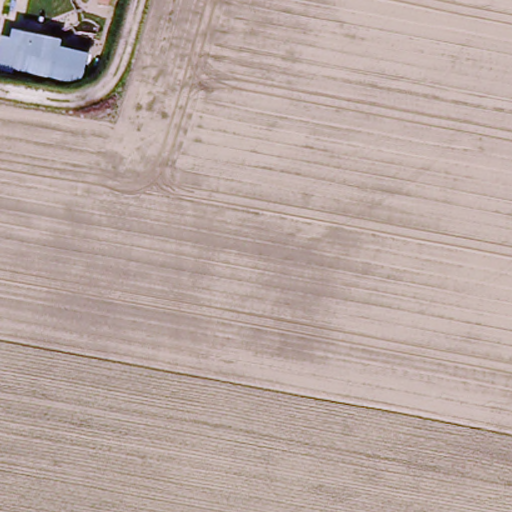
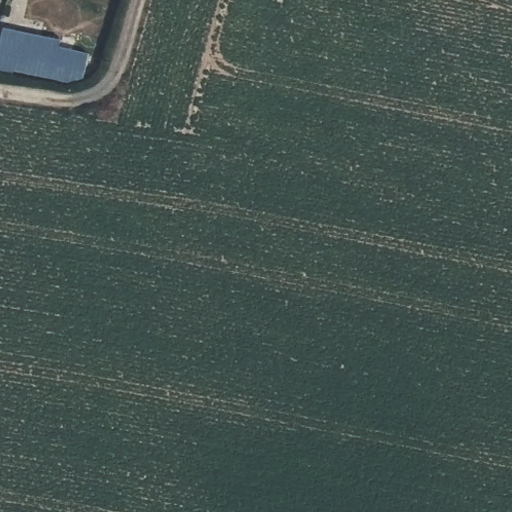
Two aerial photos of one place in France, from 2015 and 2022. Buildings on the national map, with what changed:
unchanged [(0,36),(25,42),(27,35),(47,40),(46,46),(91,57),(88,70),(83,68),(79,86),(0,67),(0,36)]

